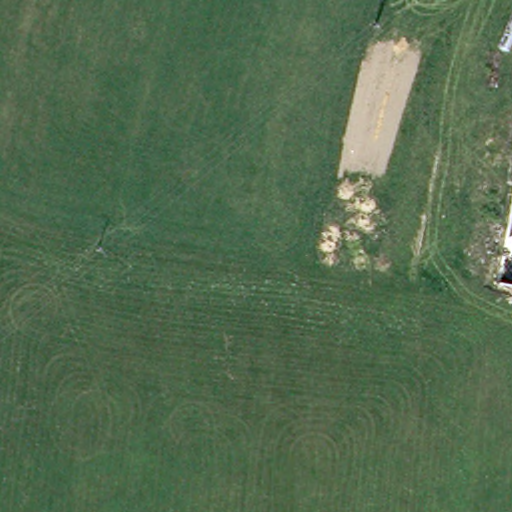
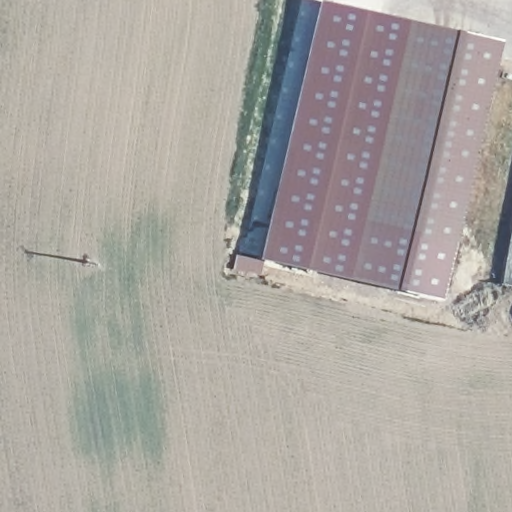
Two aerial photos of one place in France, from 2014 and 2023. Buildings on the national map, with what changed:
new [(355,222),(453,244),(441,298),(259,258),(316,0),(323,0),(400,17),(355,222)]
new [(499,39),(453,244),(355,222),(400,17),(499,39)]

